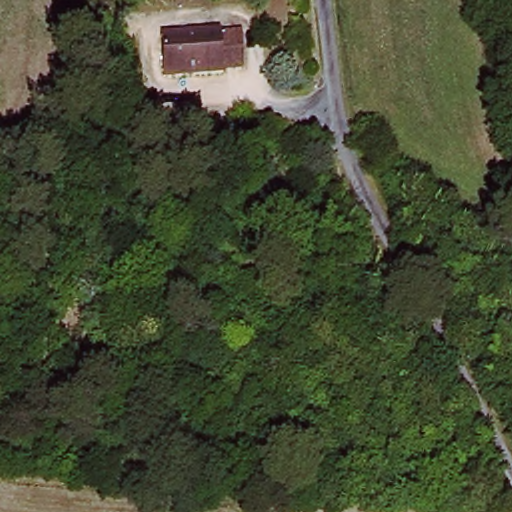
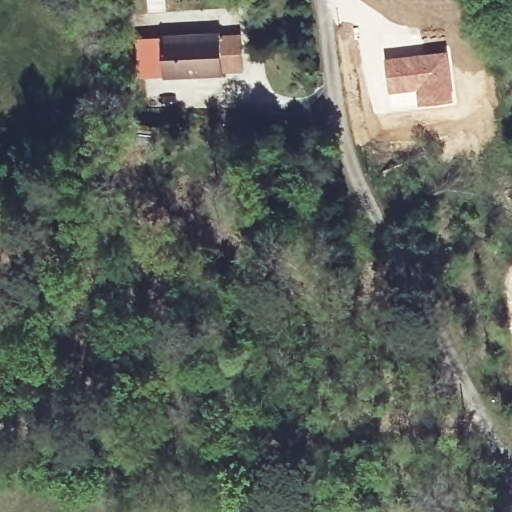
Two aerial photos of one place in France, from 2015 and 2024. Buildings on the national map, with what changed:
unchanged [(170,32),(251,33),(250,70),(229,69),(228,74),(169,72),(170,32)]
new [(447,49),(454,101),(416,106),(414,92),(388,95),(384,57),(447,49)]

